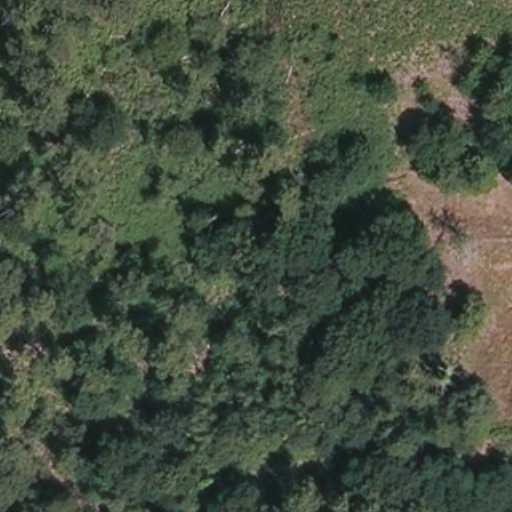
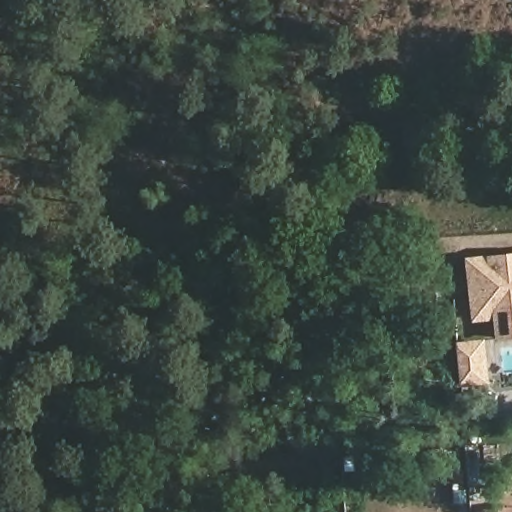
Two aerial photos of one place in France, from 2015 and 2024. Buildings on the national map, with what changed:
new [(512,340),(497,342),(495,321),(473,324),(466,259),(512,253),(512,340)]
demolished [(481,300),(452,300),(453,261),(483,262),(481,300)]
new [(486,339),(490,385),(462,388),(457,343),(486,339)]

